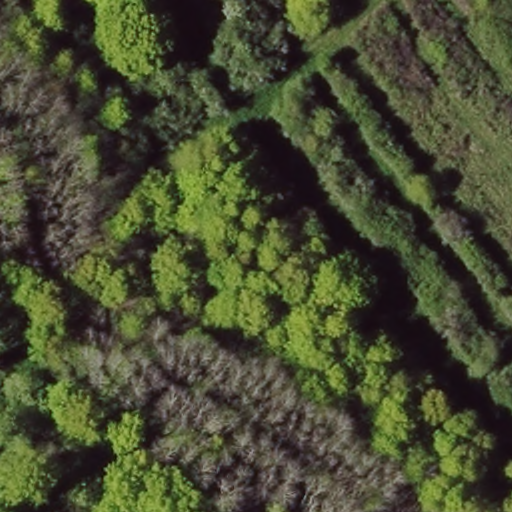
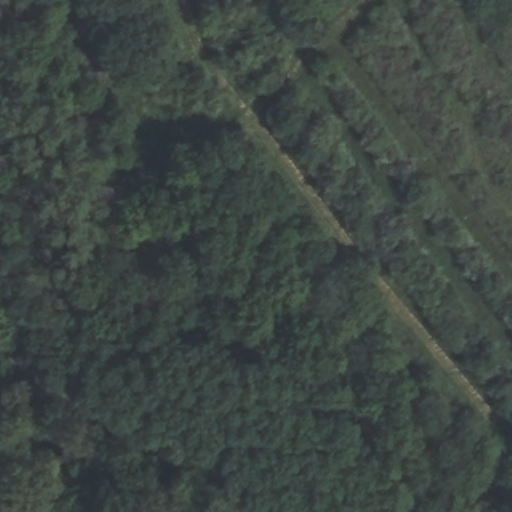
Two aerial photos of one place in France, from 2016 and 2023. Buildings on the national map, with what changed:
[]

